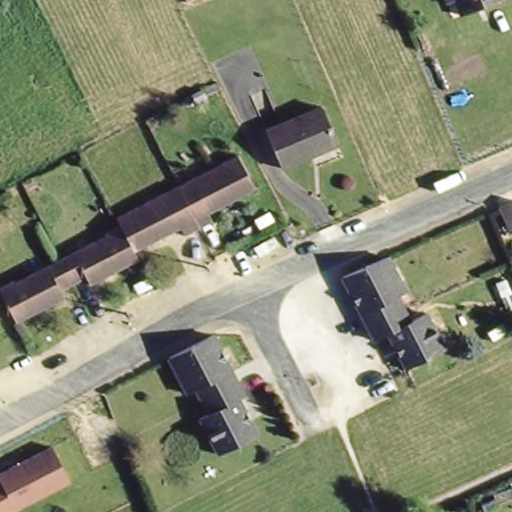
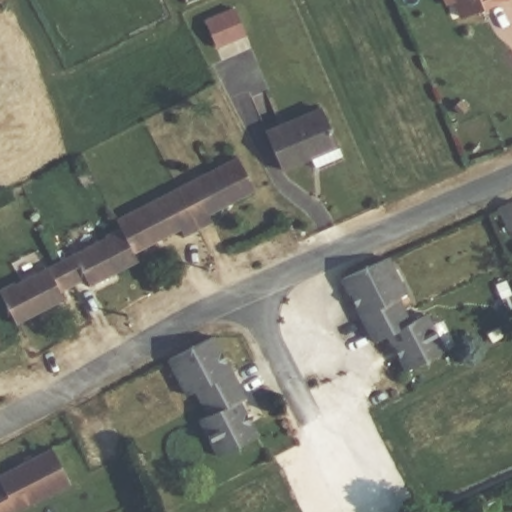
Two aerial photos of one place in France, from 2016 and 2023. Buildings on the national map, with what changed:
unchanged [(497,3),(448,24),(438,0),(496,0),(497,3)]
new [(233,6),(244,34),(216,45),(204,17),(233,6)]
unchanged [(318,111),(334,146),(310,157),(308,160),(280,172),(264,136),(318,111)]
unchanged [(172,193),(233,162),(248,191),(201,215),(204,224),(193,230),(181,235),(163,197),(172,193)]
unchanged [(509,193),(512,199),(512,218),(504,221),(494,199),(509,193)]
unchanged [(81,250),(100,241),(98,237),(114,229),(111,224),(163,197),(181,235),(176,237),(173,231),(127,254),(131,262),(96,280),(81,250)]
unchanged [(83,287),(78,279),(68,284),(53,292),(56,300),(10,324),(0,305),(0,287),(8,283),(10,287),(56,263),(81,250),(96,280),(83,287)]
unchanged [(333,276),(378,255),(398,292),(392,295),(401,312),(363,332),(333,276)]
unchanged [(408,325),(423,317),(441,352),(402,373),(383,337),(369,345),(363,332),(401,312),(408,325)]
unchanged [(240,394),(234,397),(208,410),(196,386),(186,390),(168,354),(208,333),(240,394)]
unchanged [(253,434),(217,452),(198,415),(208,410),(234,397),(253,434)]
unchanged [(71,482),(14,512),(0,512),(0,472),(51,445),(71,482)]

